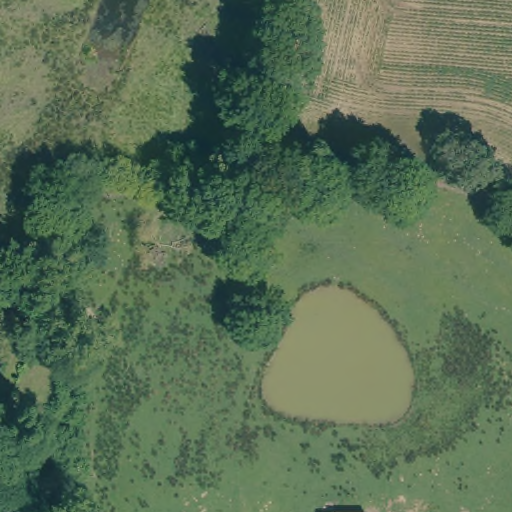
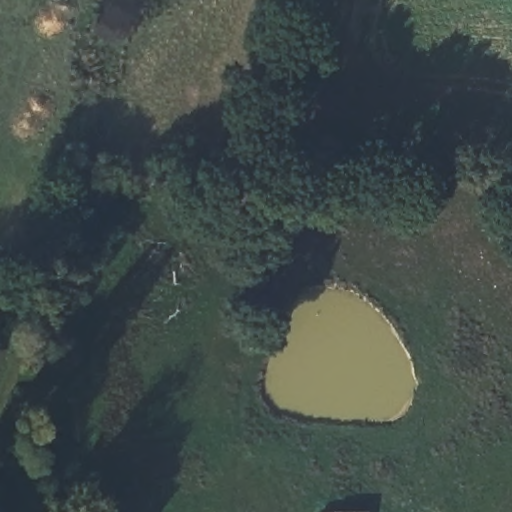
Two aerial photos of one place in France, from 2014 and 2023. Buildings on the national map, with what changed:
[]

